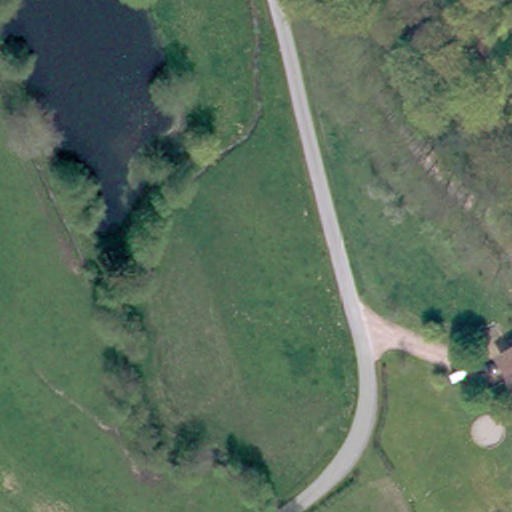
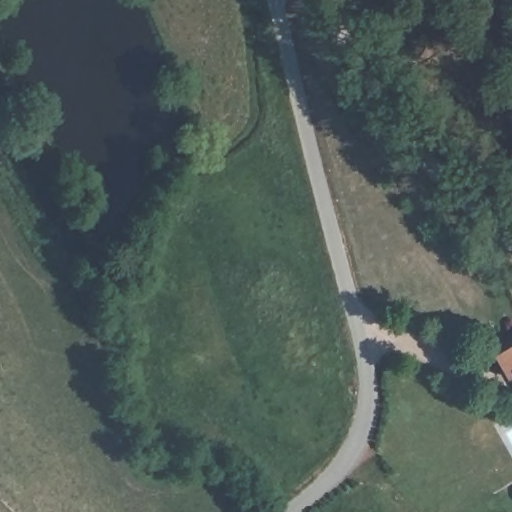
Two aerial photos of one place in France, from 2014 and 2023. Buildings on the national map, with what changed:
unchanged [(505,488),(512,485),(512,503),(505,488)]

